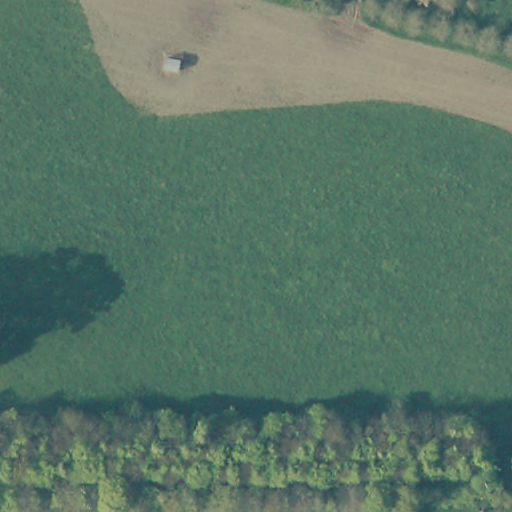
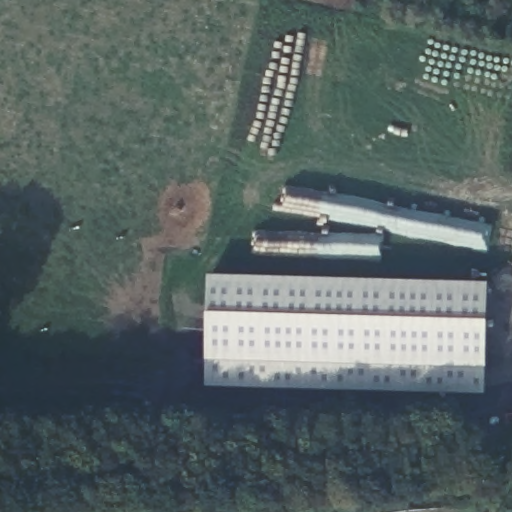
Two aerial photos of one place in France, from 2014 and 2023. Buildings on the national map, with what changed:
new [(485,394),(207,386),(208,274),(488,282),(485,394)]

